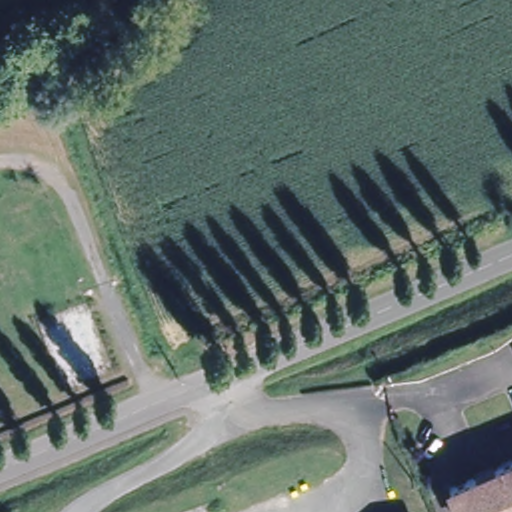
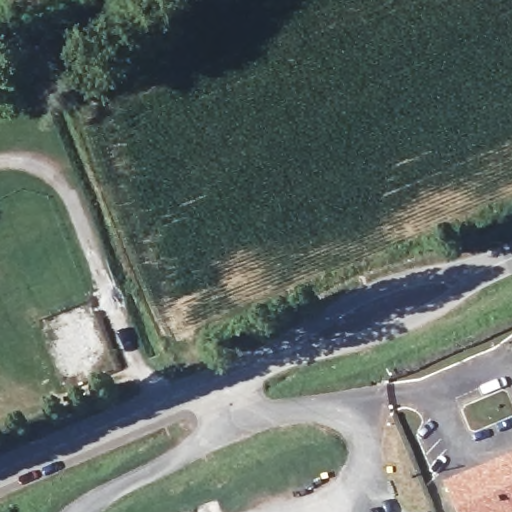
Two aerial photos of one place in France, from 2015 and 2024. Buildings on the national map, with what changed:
unchanged [(512,454),(512,512),(460,512),(448,479),(512,454)]

